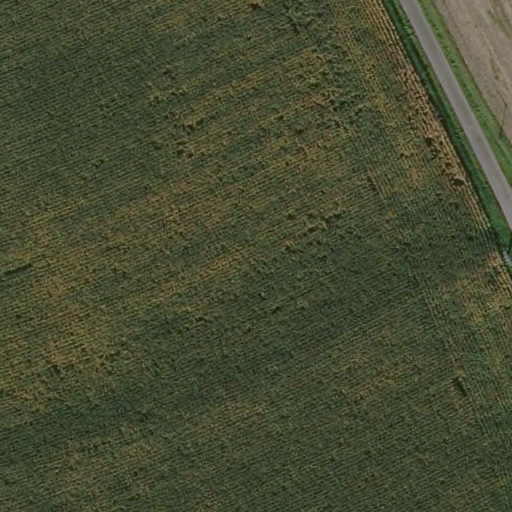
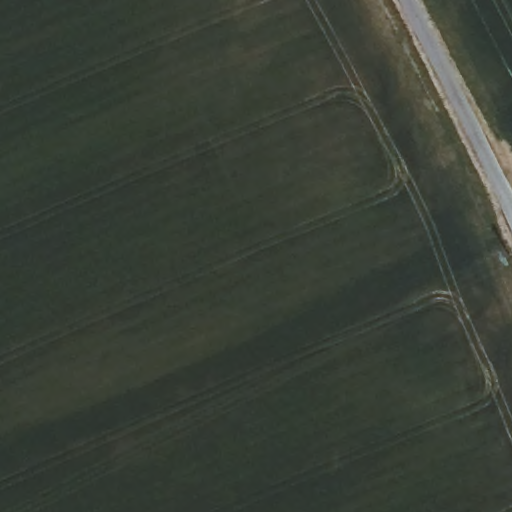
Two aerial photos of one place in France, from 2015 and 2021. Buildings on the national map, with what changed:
[]

